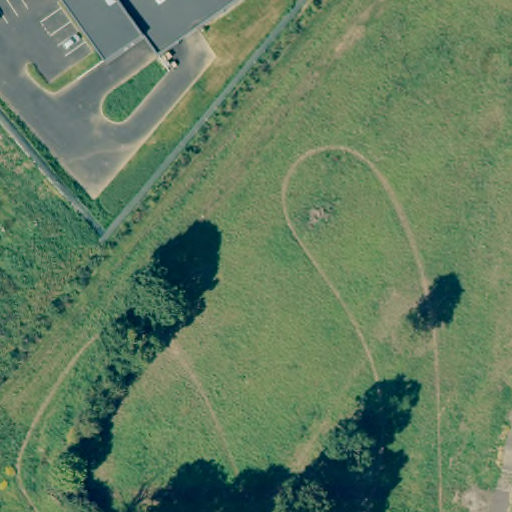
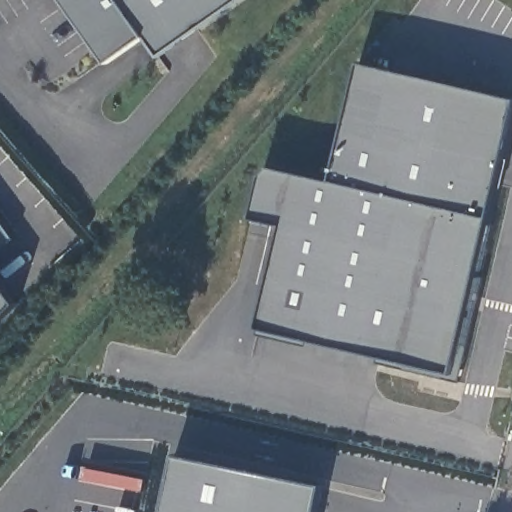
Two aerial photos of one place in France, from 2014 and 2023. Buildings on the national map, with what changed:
unchanged [(237,0),(156,57),(142,37),(106,64),(61,0),(237,0)]
new [(484,276),(460,381),(381,363),(385,357),(260,329),(282,222),(253,216),(263,175),(272,166),(330,180),(360,61),(512,97),(512,118),(476,273),(484,276)]
unchanged [(15,240),(0,251),(0,220),(15,240)]
unchanged [(17,303),(0,321),(0,279),(17,303)]
new [(316,512),(164,512),(176,455),(322,485),(316,512)]

